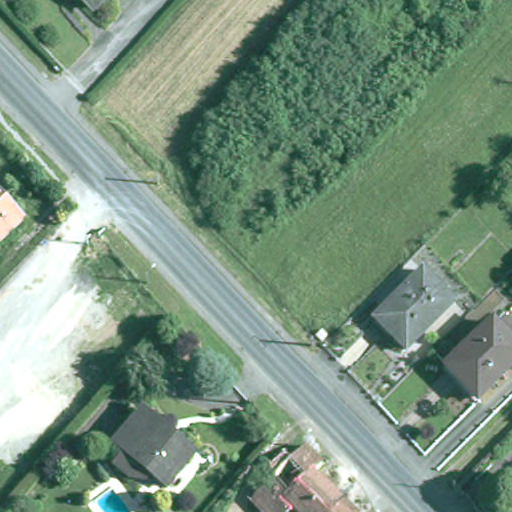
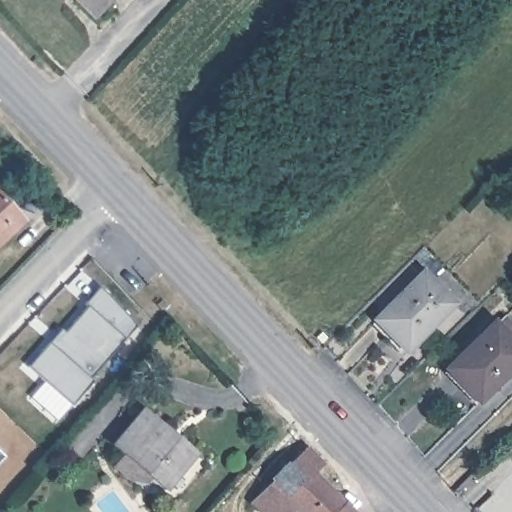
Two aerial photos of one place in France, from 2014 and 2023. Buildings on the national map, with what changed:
unchanged [(73,0),(106,0),(90,16),(73,0)]
unchanged [(0,245),(0,198),(23,223),(0,245)]
unchanged [(424,272),(456,303),(408,352),(376,321),(424,272)]
new [(62,330),(66,334),(88,308),(85,306),(100,288),(142,323),(93,380),(95,383),(73,408),(29,369),(50,344),(62,330)]
unchanged [(494,324),(495,325),(504,317),(512,325),(512,368),(479,401),(448,370),(494,324)]
unchanged [(314,338),(323,331),(331,341),(324,349),(314,338)]
unchanged [(123,472),(115,465),(113,460),(121,450),(110,442),(138,407),(166,429),(163,432),(188,452),(161,484),(136,463),(128,473),(123,472)]
unchanged [(248,507),(260,495),(301,454),(319,472),(309,480),(341,512),(253,512),(248,507)]

